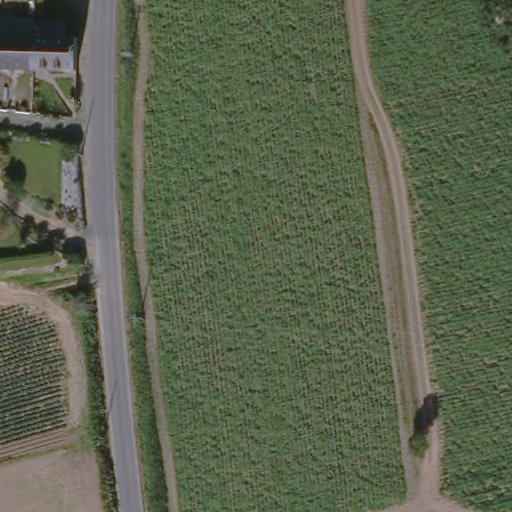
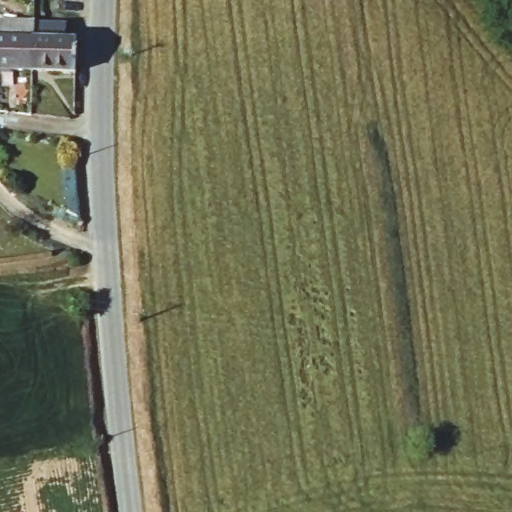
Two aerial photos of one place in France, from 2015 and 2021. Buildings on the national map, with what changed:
unchanged [(34,26),(33,74),(0,73),(0,24),(34,26)]
unchanged [(33,74),(34,26),(61,27),(61,41),(78,42),(76,74),(33,74)]

